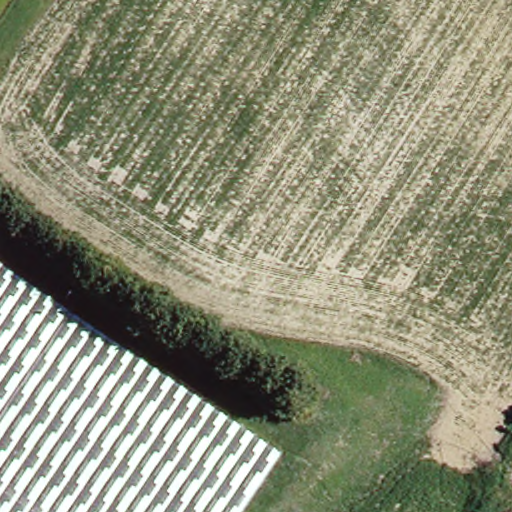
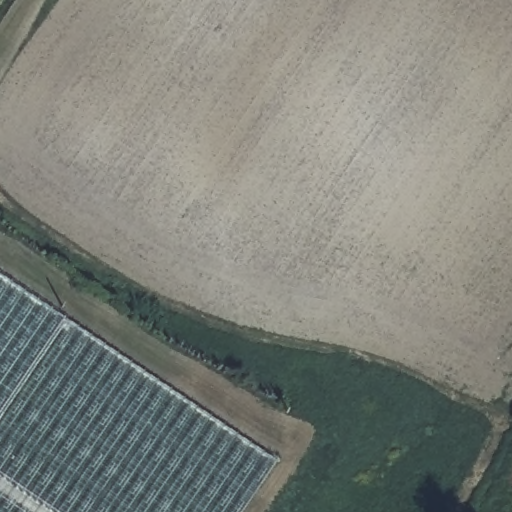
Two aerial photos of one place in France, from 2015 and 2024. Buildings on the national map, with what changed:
unchanged [(255,512),(0,512),(0,268),(287,466),(255,512)]

